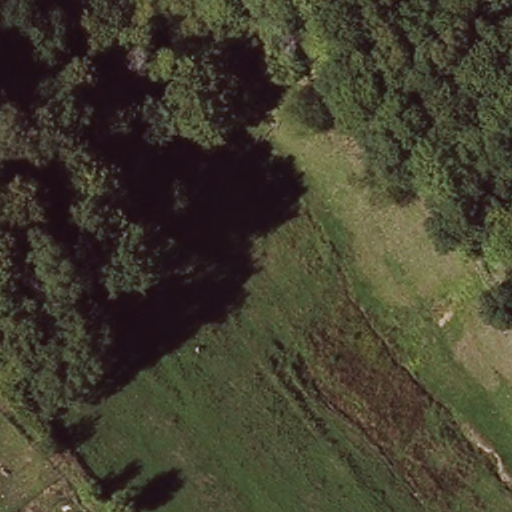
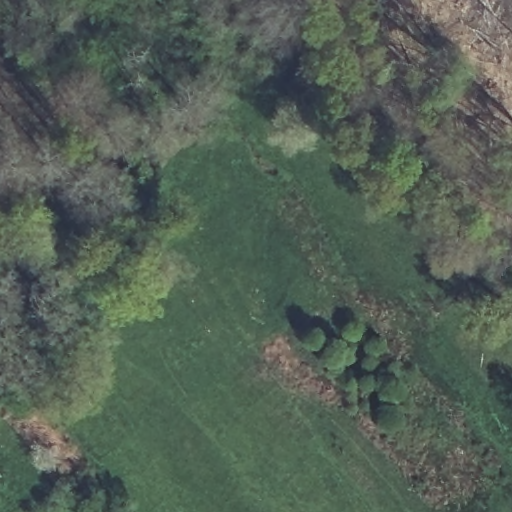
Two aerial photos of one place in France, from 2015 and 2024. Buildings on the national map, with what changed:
[]

